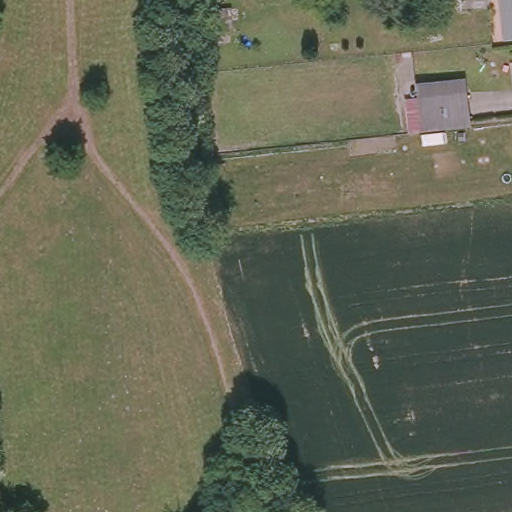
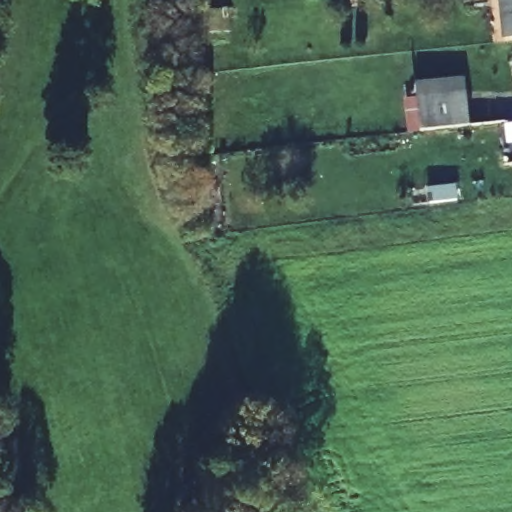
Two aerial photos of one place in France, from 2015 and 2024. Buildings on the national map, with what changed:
unchanged [(460,0),(474,0),(460,1),(460,0)]
unchanged [(492,0),(512,0),(512,38),(496,39),(492,0)]
unchanged [(419,100),(467,94),(471,123),(423,129),(419,100)]

